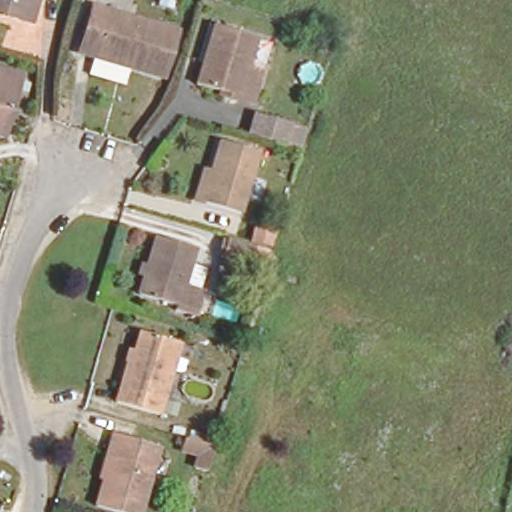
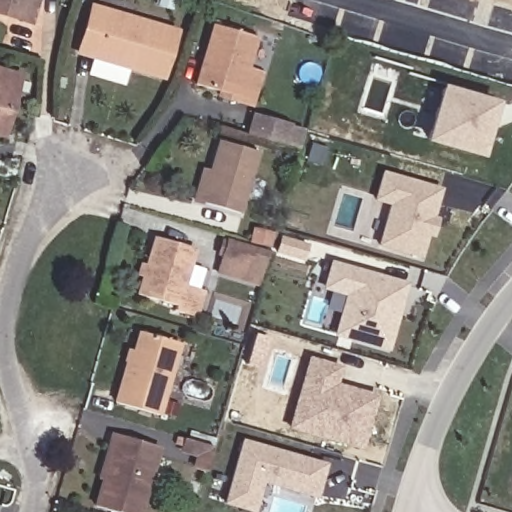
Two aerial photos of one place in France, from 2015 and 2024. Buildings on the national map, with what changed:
unchanged [(28,21),(10,16),(0,13),(0,0),(34,0),(28,21)]
unchanged [(175,26),(159,72),(76,46),(90,0),(175,26)]
unchanged [(250,29),(243,59),(256,63),(248,93),(193,78),(209,18),(250,29)]
unchanged [(0,114),(0,70),(11,73),(0,114)]
new [(440,84),(498,100),(482,158),(424,142),(440,84)]
unchanged [(301,151),(243,136),(249,113),(308,129),(301,151)]
unchanged [(253,151),(237,211),(197,200),(213,139),(253,151)]
new [(388,205),(373,201),(381,170),(442,187),(434,216),(438,217),(433,238),(428,237),(422,259),(377,246),(388,205)]
unchanged [(194,239),(185,274),(200,279),(193,307),(173,302),(174,297),(141,286),(156,229),(194,239)]
unchanged [(221,252),(227,232),(253,238),(269,242),(264,263),(248,259),(221,252)]
new [(345,296),(321,289),(329,260),(408,282),(389,352),(333,336),(345,296)]
unchanged [(123,341),(131,343),(136,325),(174,337),(154,407),(108,393),(123,341)]
new [(307,356),(343,365),(338,383),(379,394),(363,450),(287,429),(307,356)]
unchanged [(112,426),(156,438),(136,510),(94,497),(112,426)]
unchanged [(201,459),(203,448),(185,443),(188,432),(220,441),(214,463),(201,459)]
new [(327,463),(318,498),(263,484),(255,512),(251,512),(223,503),(241,439),(327,463)]

